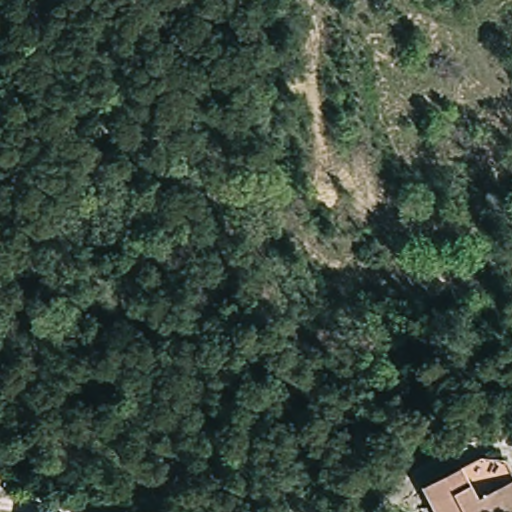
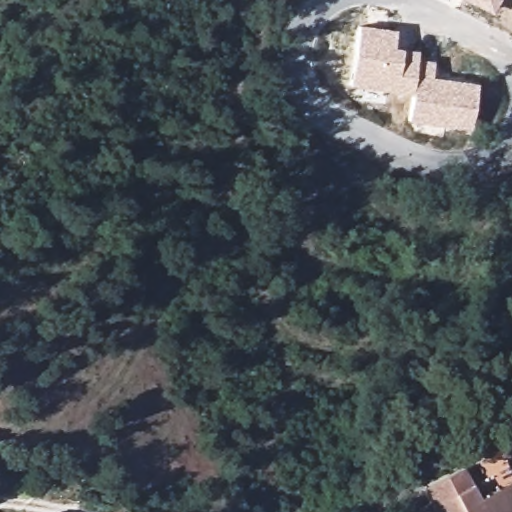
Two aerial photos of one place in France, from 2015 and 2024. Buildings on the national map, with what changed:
new [(462,0),(500,0),(492,16),(462,0)]
new [(477,84),(471,130),(409,122),(412,95),(351,86),(359,26),(398,30),(395,48),(402,50),(419,51),(418,59),(435,61),(433,79),(477,84)]
unchanged [(427,480),(472,462),(482,492),(501,487),(512,483),(512,512),(438,512),(427,480)]

